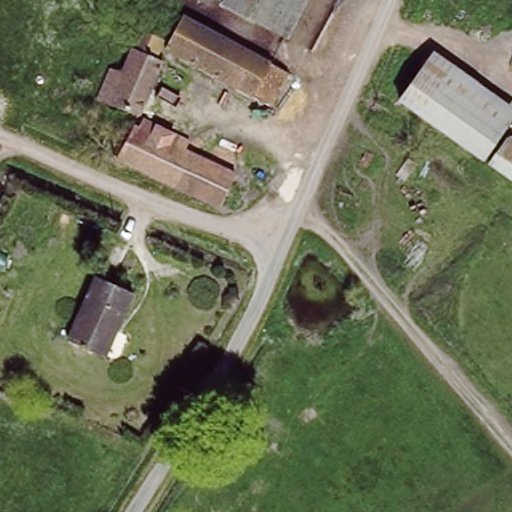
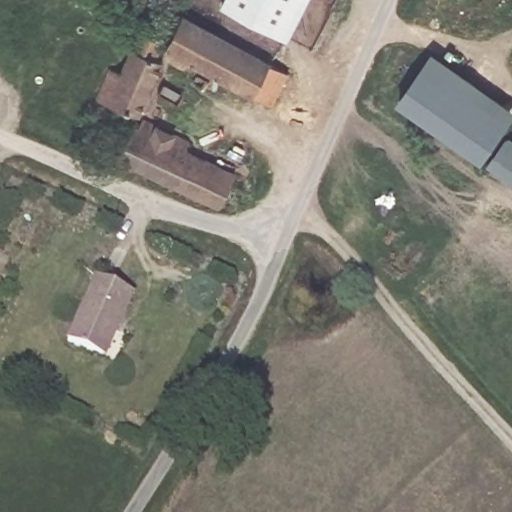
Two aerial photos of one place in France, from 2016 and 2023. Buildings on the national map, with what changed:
unchanged [(239,0),(309,0),(291,35),(236,6),(239,0)]
unchanged [(194,20),(295,76),(278,106),(177,50),(180,45),(194,20)]
unchanged [(138,111),(132,120),(124,114),(125,112),(129,106),(107,92),(112,82),(123,63),(133,67),(154,30),(160,33),(180,45),(177,50),(174,49),(170,57),(173,59),(144,115),(138,111)]
unchanged [(485,157),(395,102),(422,57),(512,111),(493,144),(485,157)]
unchanged [(140,123),(142,119),(150,122),(150,120),(192,141),(188,149),(237,174),(220,207),(122,156),(140,123)]
unchanged [(482,163),(485,157),(493,144),(512,155),(512,182),(482,163)]
unchanged [(132,288),(107,352),(68,336),(93,272),(132,288)]

